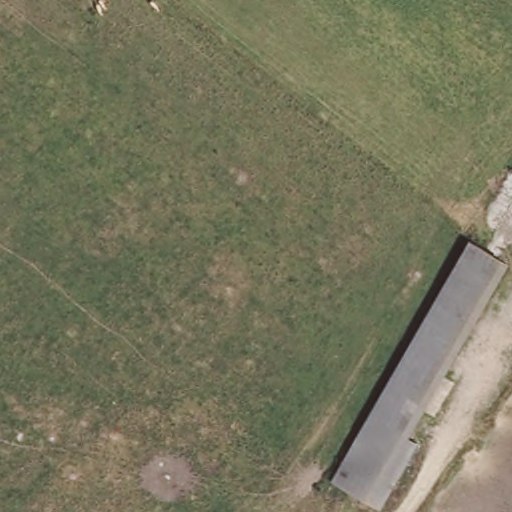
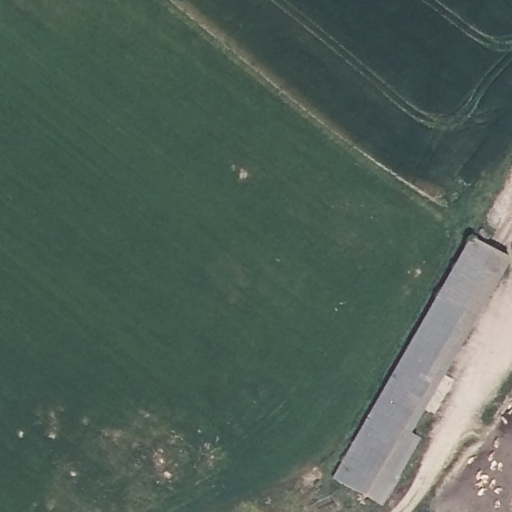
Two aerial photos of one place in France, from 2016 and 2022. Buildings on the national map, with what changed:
unchanged [(462,240),(499,261),(402,434),(412,440),(376,506),(330,478),(462,240)]

